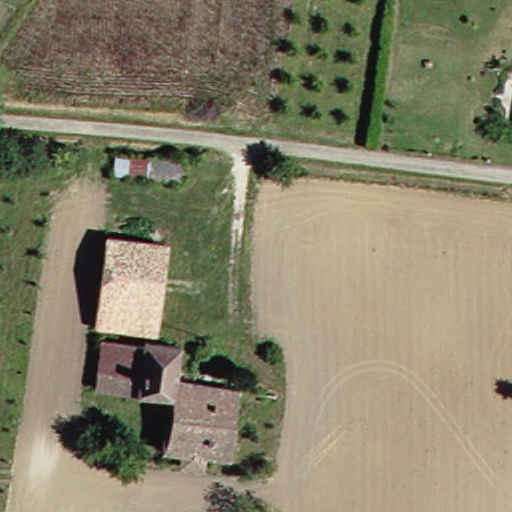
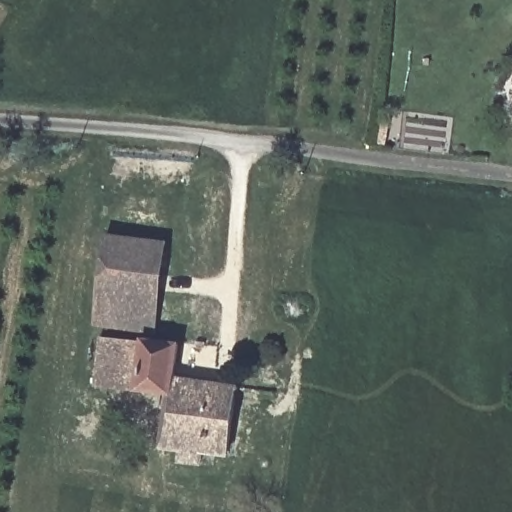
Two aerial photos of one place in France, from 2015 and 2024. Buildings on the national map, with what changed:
unchanged [(114,155),(187,160),(185,181),(112,176),(114,155)]
unchanged [(103,300),(111,237),(172,244),(162,307),(103,300)]
unchanged [(159,331),(98,324),(103,300),(162,307),(159,331)]
unchanged [(179,458),(181,446),(164,444),(171,394),(97,382),(103,336),(181,348),(178,379),(242,388),(235,453),(206,449),(204,462),(179,458)]

